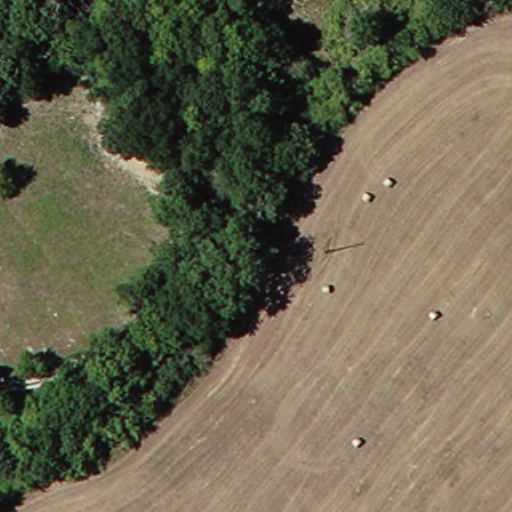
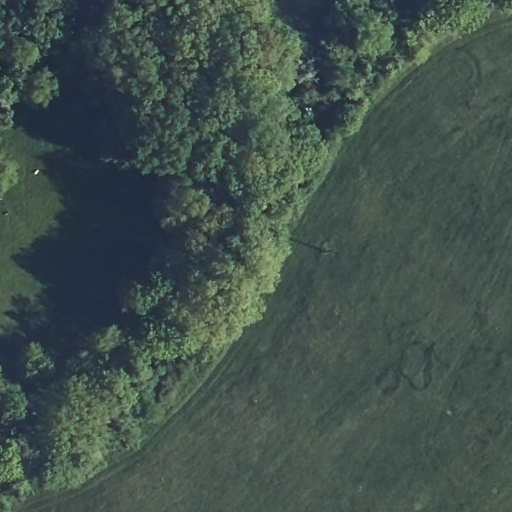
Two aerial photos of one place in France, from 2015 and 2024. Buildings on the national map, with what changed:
[]

